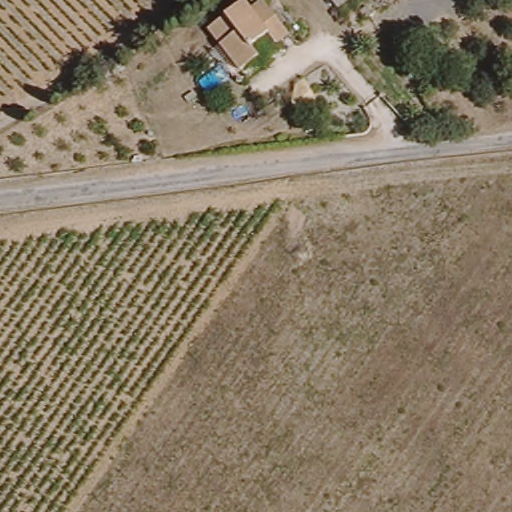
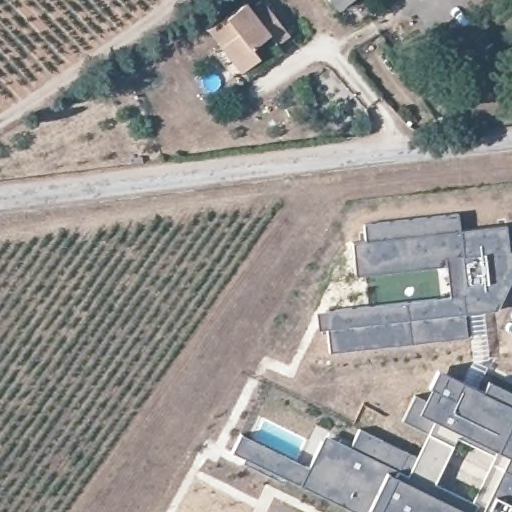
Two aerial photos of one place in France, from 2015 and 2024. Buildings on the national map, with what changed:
unchanged [(331,16),(319,0),(351,0),(331,16)]
unchanged [(240,76),(209,33),(246,7),(252,16),(265,7),(289,40),(276,50),(259,62),(240,76)]
new [(319,329),(317,312),(450,296),(446,265),(357,275),(352,242),(366,240),(365,224),(459,213),(461,228),(506,222),(509,250),(512,251),(512,278),(496,309),(466,313),(467,336),(330,351),(328,329),(319,329)]
new [(240,435),(308,467),(324,434),(350,446),(360,430),(416,458),(428,433),(404,422),(415,397),(423,398),(430,384),(438,370),(481,390),(487,381),(512,392),(512,512),(353,512),(231,452),(240,435)]

